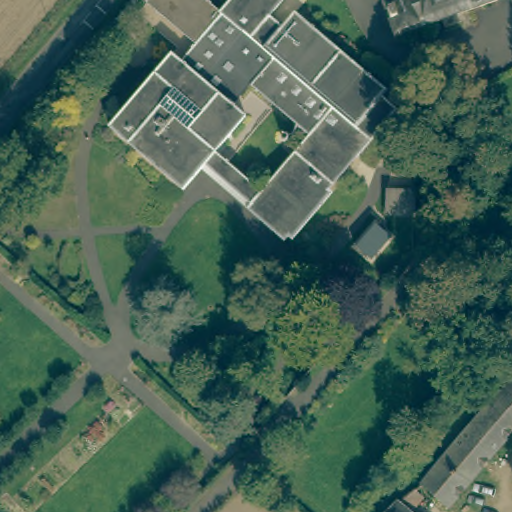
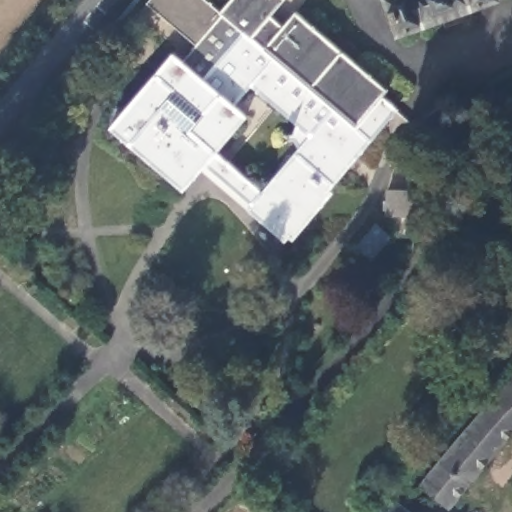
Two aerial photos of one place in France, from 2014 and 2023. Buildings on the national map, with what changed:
unchanged [(179,188),(108,125),(170,52),(179,60),(194,43),(145,0),(205,0),(217,10),(226,0),(281,0),(266,17),(278,26),(291,13),(383,89),(378,98),(391,109),(282,238),(245,207),(249,202),(259,190),(296,146),(284,137),(292,125),(247,87),(231,106),(240,113),(211,149),(202,163),(179,188)]
unchanged [(387,0),(495,0),(496,3),(398,34),(387,0)]
unchanged [(211,149),(259,190),(249,202),(202,163),(211,149)]
unchanged [(414,187),(415,216),(389,217),(388,189),(414,187)]
unchanged [(490,391),(512,367),(512,417),(487,395),(490,391)]
unchanged [(512,427),(446,503),(418,480),(487,395),(512,417),(512,427)]
unchanged [(410,487),(423,496),(412,512),(384,512),(389,506),(410,487)]

